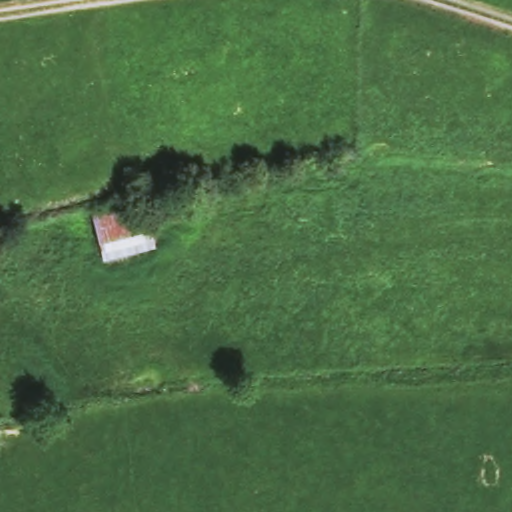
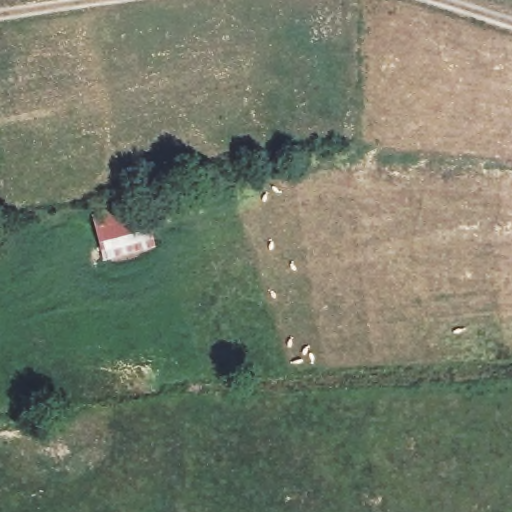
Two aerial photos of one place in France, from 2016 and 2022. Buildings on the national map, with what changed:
unchanged [(90,214),(146,197),(157,237),(96,252),(90,214)]

